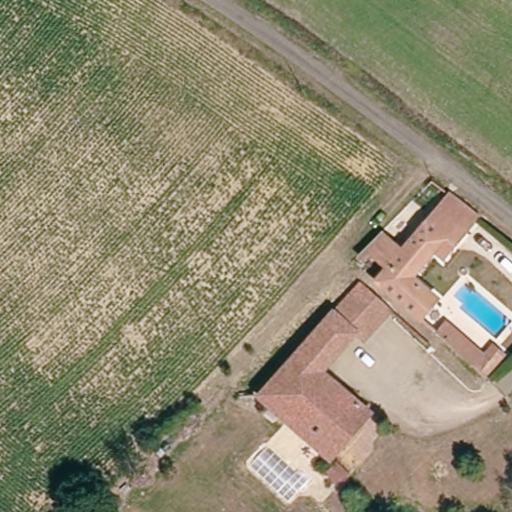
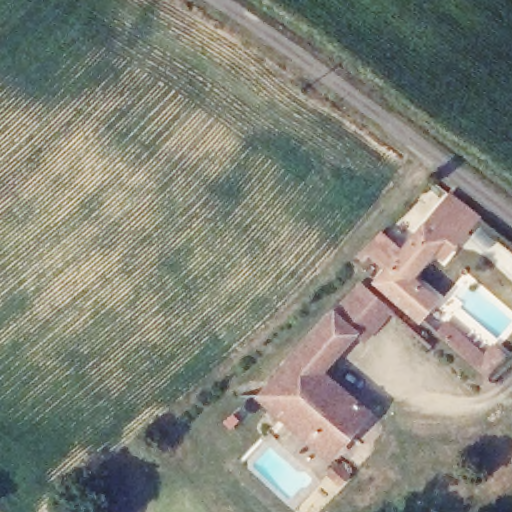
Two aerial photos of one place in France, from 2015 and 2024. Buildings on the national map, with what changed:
unchanged [(449,195),(480,222),(446,260),(435,250),(416,274),(440,294),(421,316),(376,278),(449,195)]
unchanged [(393,253),(384,264),(371,253),(365,259),(360,254),(365,249),(375,238),(393,253)]
unchanged [(358,329),(337,312),(363,282),(377,294),(391,305),(364,334),(358,329)]
unchanged [(337,312),(358,329),(327,365),(373,408),(334,454),(264,392),(337,312)]
unchanged [(488,381),(434,335),(445,322),(484,356),(492,346),(510,361),(488,381)]
unchanged [(353,469),(352,471),(344,481),(332,471),(341,461),(341,460),(353,469)]

